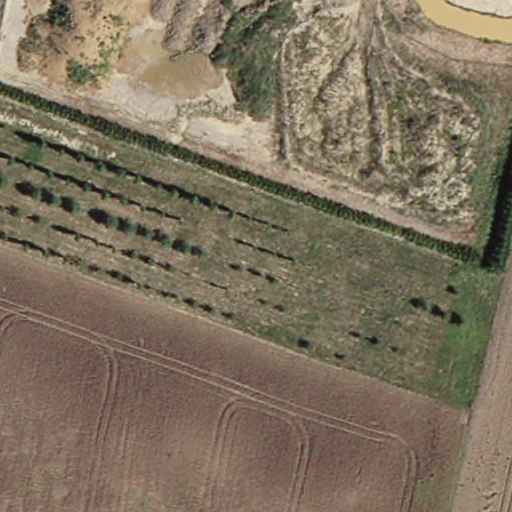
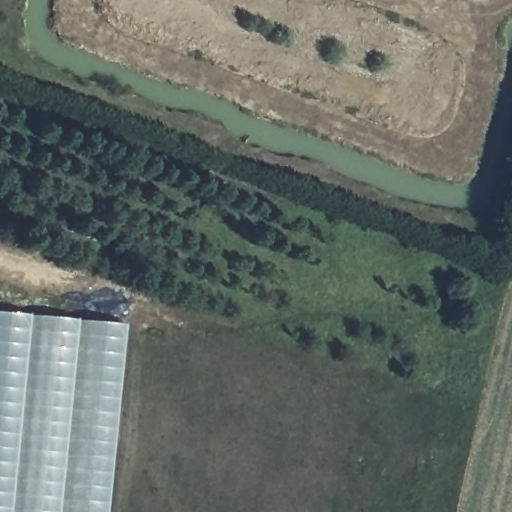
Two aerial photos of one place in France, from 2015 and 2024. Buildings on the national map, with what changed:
new [(0,512),(0,314),(125,326),(105,512),(0,512)]

